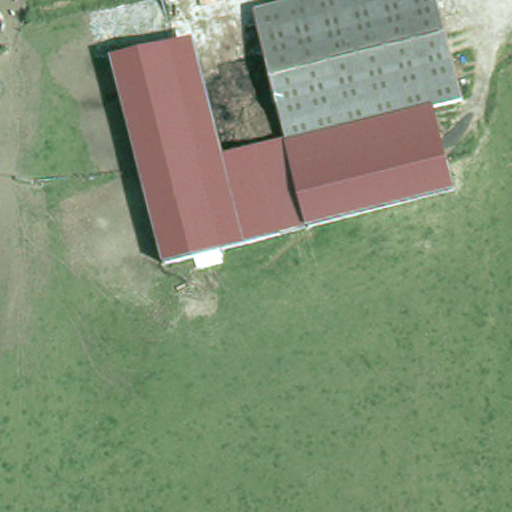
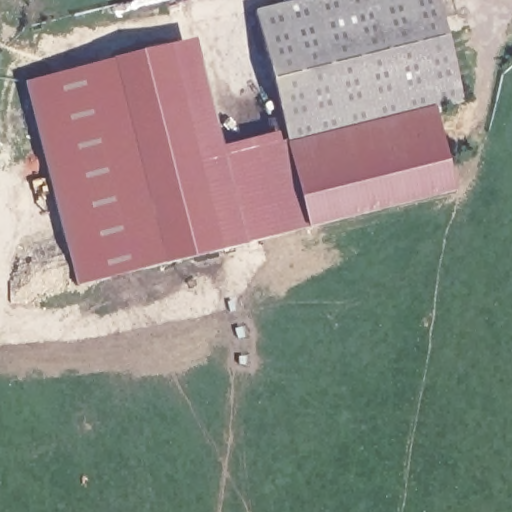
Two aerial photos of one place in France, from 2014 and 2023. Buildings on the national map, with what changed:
unchanged [(286,148),(252,16),(317,0),(436,0),(462,104),(435,110),(286,148)]
unchanged [(286,148),(306,229),(246,244),(164,265),(112,59),(194,40),(224,156),(285,140),(286,148)]
new [(164,265),(76,288),(25,81),(112,59),(164,265)]
unchanged [(435,110),(453,192),(306,229),(286,148),(435,110)]

